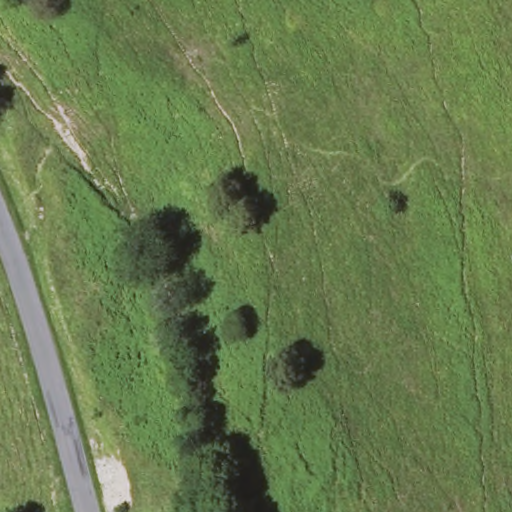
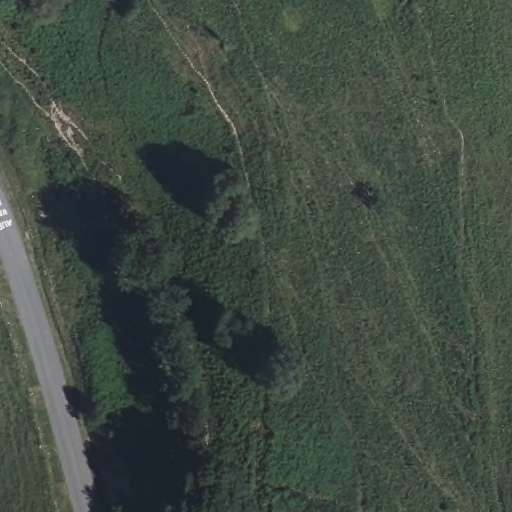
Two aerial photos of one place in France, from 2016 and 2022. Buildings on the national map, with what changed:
[]

